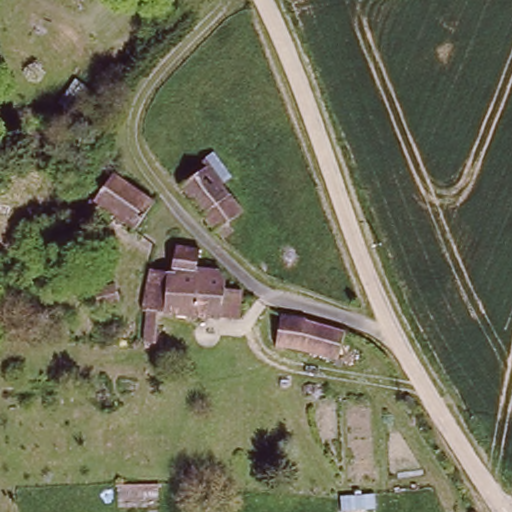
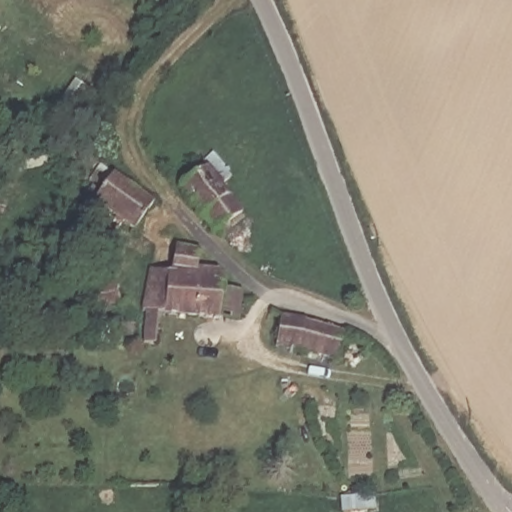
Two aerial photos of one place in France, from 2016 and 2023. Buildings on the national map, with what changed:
unchanged [(183,187),(204,171),(218,186),(238,212),(221,228),(183,187)]
unchanged [(101,176),(155,199),(146,224),(91,201),(101,176)]
unchanged [(161,315),(155,343),(139,341),(146,273),(165,270),(171,252),(198,252),(199,265),(223,267),(226,286),(243,291),(243,319),(161,315)]
unchanged [(280,312),(311,318),(344,328),(337,359),(299,350),(278,346),(280,312)]

